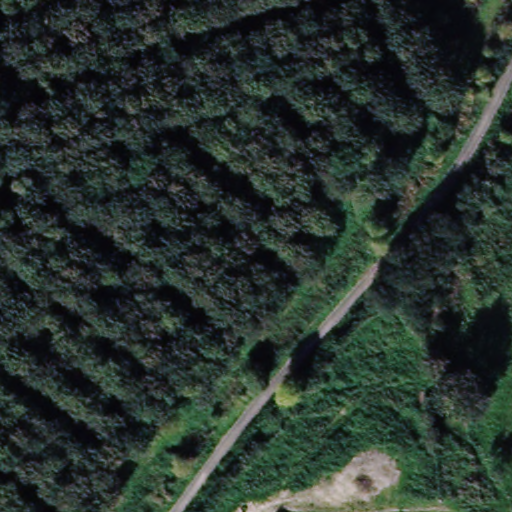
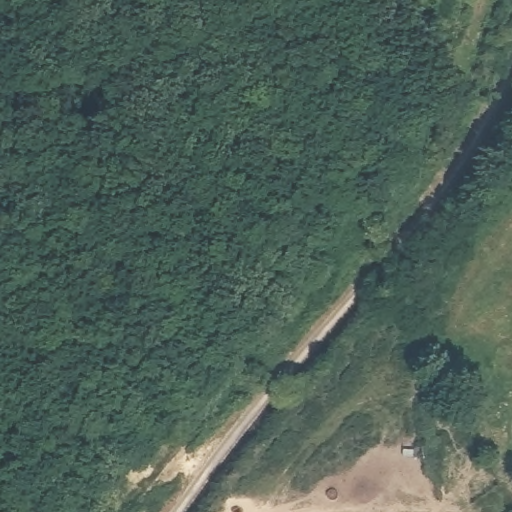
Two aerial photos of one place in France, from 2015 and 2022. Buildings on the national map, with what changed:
[]

